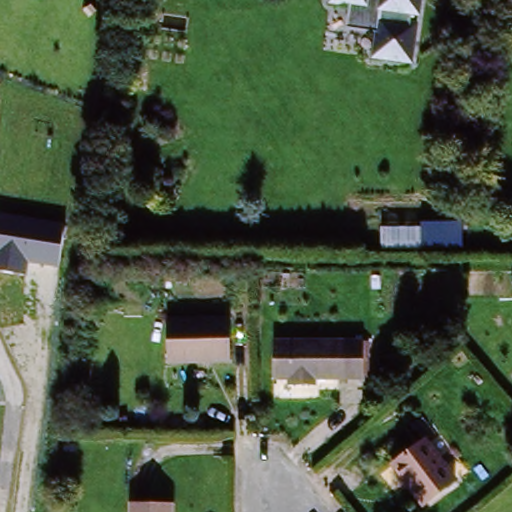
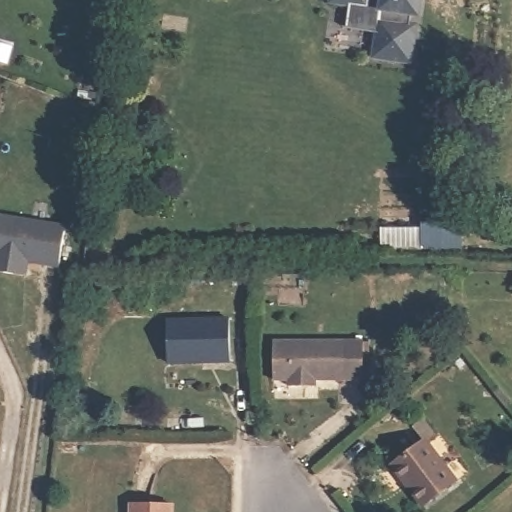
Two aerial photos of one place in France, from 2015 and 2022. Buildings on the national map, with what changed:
unchanged [(422,19),(415,19),(413,28),(420,30),(413,67),(374,62),(377,36),(350,32),(353,11),(332,7),(333,0),(423,0),(422,19)]
unchanged [(60,267),(28,262),(26,277),(0,273),(0,213),(65,223),(60,267)]
unchanged [(165,363),(163,321),(227,318),(228,361),(165,363)]
unchanged [(311,390),(292,390),(292,382),(276,383),(275,343),(348,341),(350,381),(320,382),(320,390),(311,390)]
unchanged [(425,442),(457,482),(430,503),(412,481),(405,486),(392,470),(425,442)]
unchanged [(133,512),(133,506),(172,507),(172,512),(133,512)]

